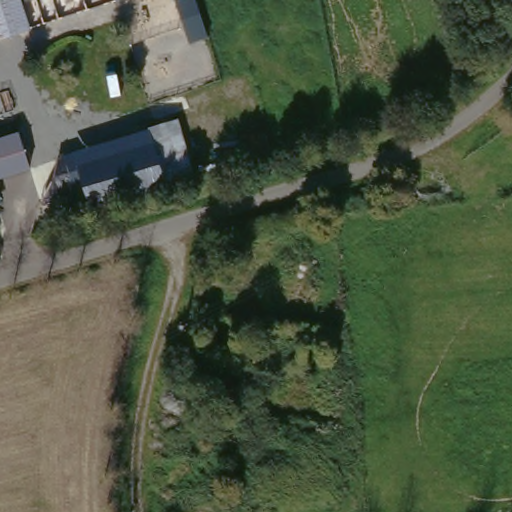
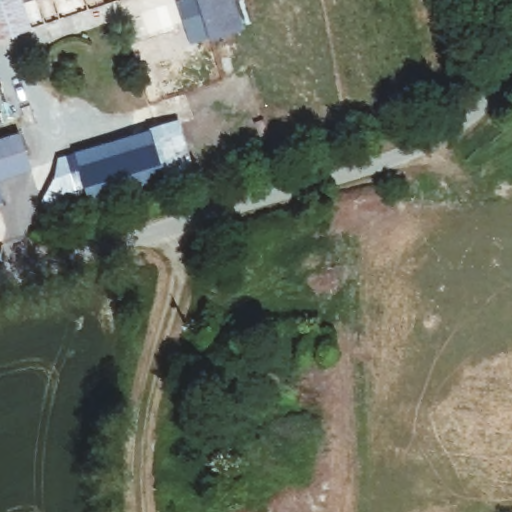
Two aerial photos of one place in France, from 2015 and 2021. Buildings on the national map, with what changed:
unchanged [(31,29),(0,40),(0,0),(30,0),(24,2),(31,29)]
new [(210,42),(208,36),(191,42),(176,0),(235,0),(246,30),(210,42)]
unchanged [(150,130),(150,127),(178,118),(194,170),(167,177),(171,186),(94,212),(90,204),(78,207),(74,193),(53,200),(60,156),(150,130)]
unchanged [(28,169),(0,179),(0,143),(17,137),(28,169)]
unchanged [(0,249),(0,240),(3,249),(0,249)]

